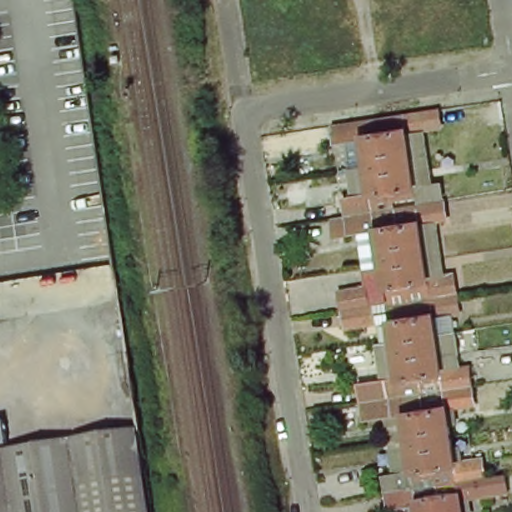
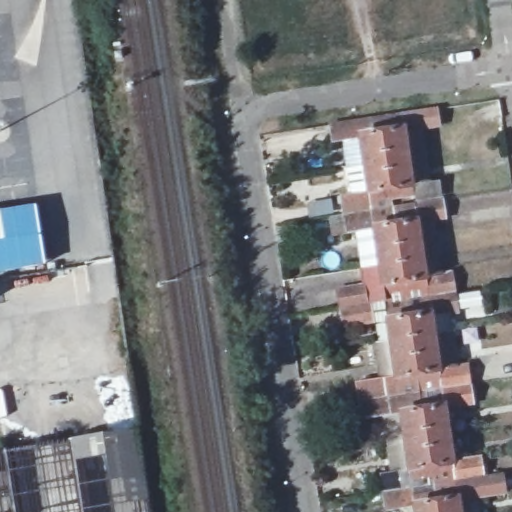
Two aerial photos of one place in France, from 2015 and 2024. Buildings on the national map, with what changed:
unchanged [(381,379),(376,343),(392,340),(389,320),(345,327),(339,290),(366,285),(363,270),(358,232),(334,236),(332,219),(346,216),(343,196),(351,195),(347,168),(343,140),(335,141),(332,125),(438,109),(440,126),(424,129),(432,182),(441,181),(444,200),(447,220),(437,221),(442,257),(445,275),(453,273),(459,310),(452,311),(455,333),(460,366),(468,365),(475,404),(446,408),(454,460),(480,457),(483,478),(435,486),(435,487),(504,477),(506,492),(459,500),(461,512),(417,512),(417,507),(388,512),(385,491),(400,489),(397,472),(394,472),(389,442),(385,416),(364,420),(358,382),(381,379)]
unchanged [(499,157),(495,131),(491,130),(491,125),(503,124),(508,156),(499,157)]
new [(34,210),(42,267),(0,274),(0,215),(34,210)]
unchanged [(77,438),(138,429),(150,512),(0,512),(0,450),(77,438)]

